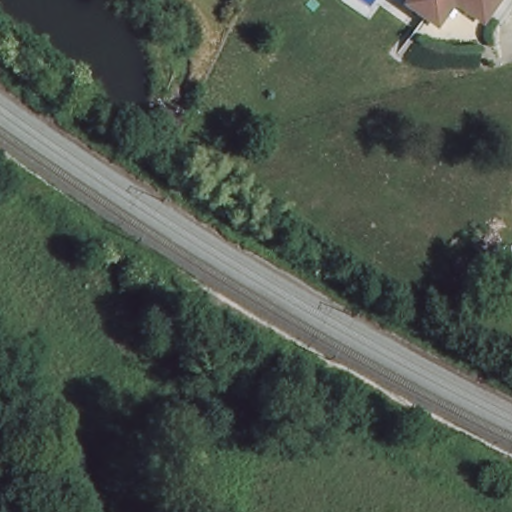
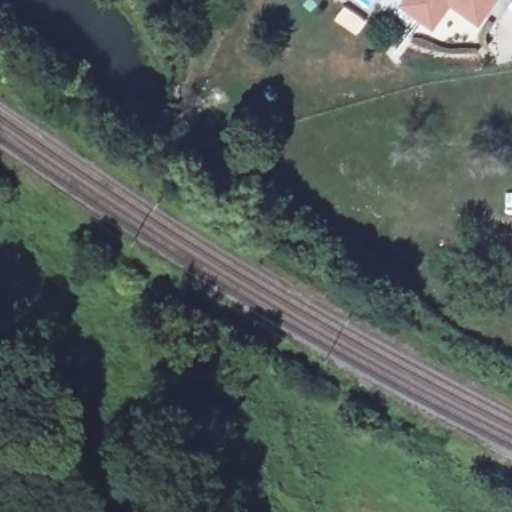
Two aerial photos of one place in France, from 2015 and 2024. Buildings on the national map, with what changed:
unchanged [(472,16),(453,1),(435,25),(429,21),(405,3),(407,0),(498,0),(486,15),(481,22),(472,16)]

